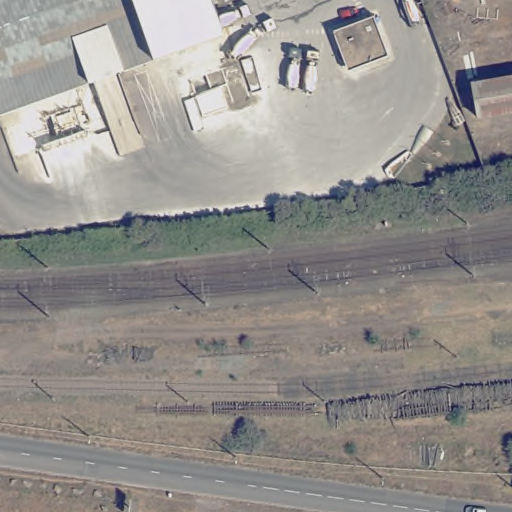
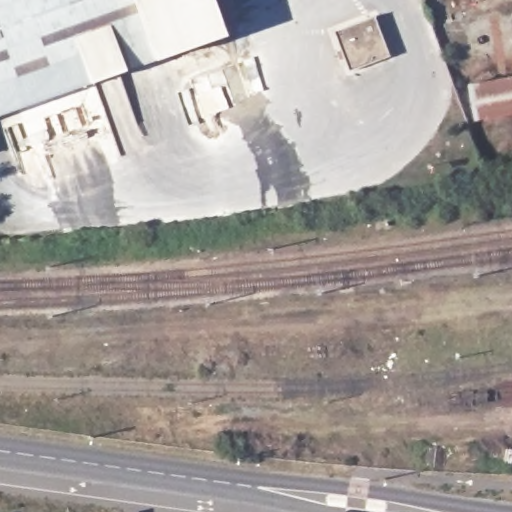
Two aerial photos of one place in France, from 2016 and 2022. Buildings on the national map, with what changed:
unchanged [(223,33),(0,112),(0,0),(212,0),(223,33)]
unchanged [(336,41),(344,25),(368,16),(383,56),(347,70),(336,41)]

